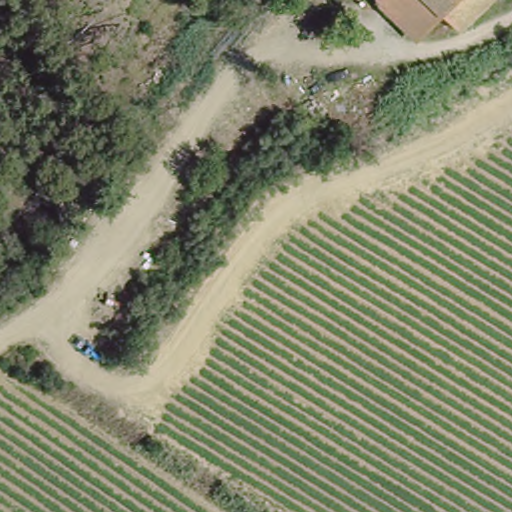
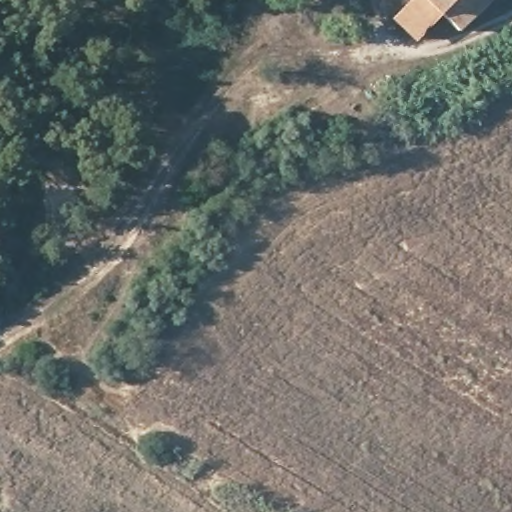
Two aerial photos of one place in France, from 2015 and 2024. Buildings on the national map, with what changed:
unchanged [(410,40),(370,0),(421,0),(437,15),(410,40)]
unchanged [(437,15),(421,0),(481,0),(452,29),(437,15)]

